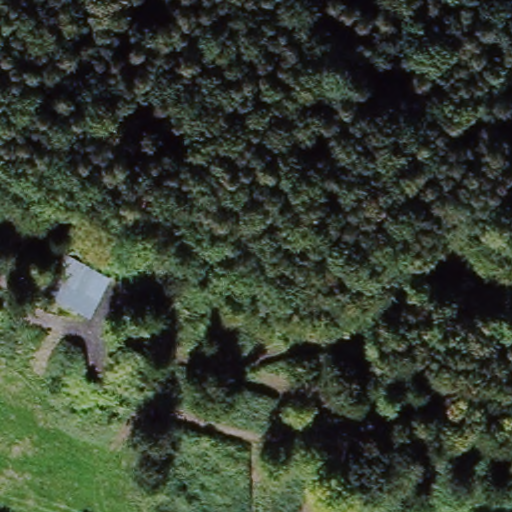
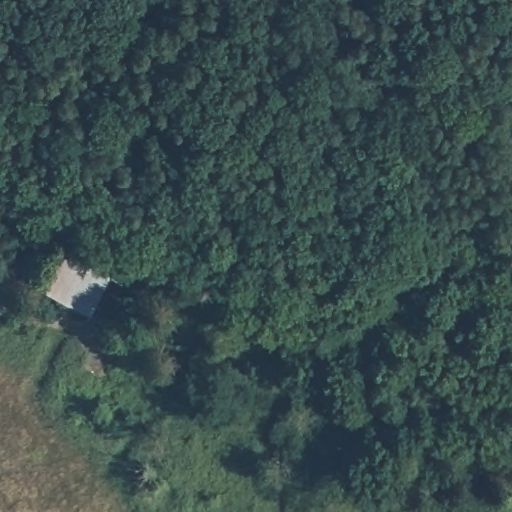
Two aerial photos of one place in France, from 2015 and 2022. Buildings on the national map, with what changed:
unchanged [(36,292),(56,254),(110,275),(85,316),(36,292)]

